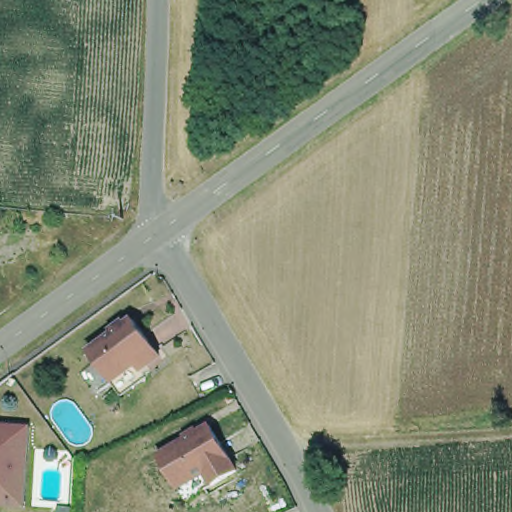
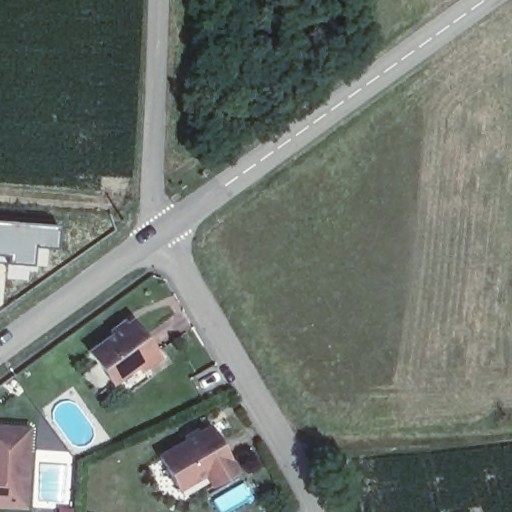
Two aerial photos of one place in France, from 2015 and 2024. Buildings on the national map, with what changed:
new [(62,225),(59,247),(34,246),(33,264),(9,262),(8,251),(0,250),(0,221),(62,225)]
unchanged [(123,392),(115,381),(91,349),(133,317),(161,355),(141,370),(146,374),(123,392)]
unchanged [(27,426),(23,506),(0,504),(0,424),(27,426)]
unchanged [(181,487),(162,453),(212,425),(237,470),(215,482),(188,498),(181,487)]

